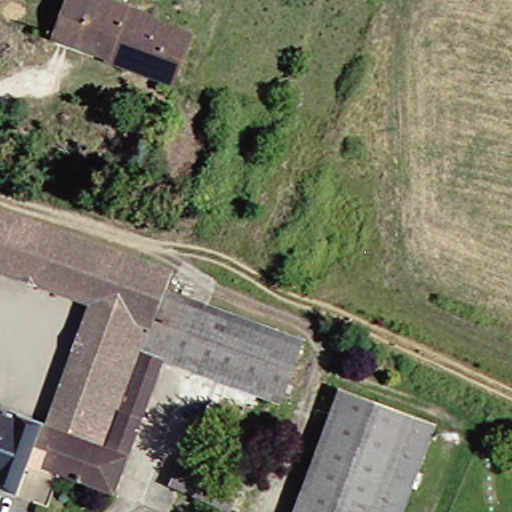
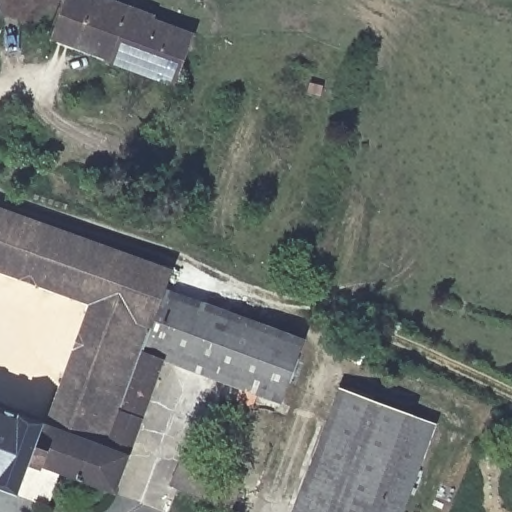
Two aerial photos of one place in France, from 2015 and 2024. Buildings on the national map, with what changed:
unchanged [(61,38),(77,0),(114,0),(163,19),(162,25),(201,40),(183,80),(180,91),(116,63),(61,38)]
unchanged [(180,290),(309,336),(286,400),(173,358),(122,495),(86,482),(38,464),(28,496),(0,486),(0,403),(56,425),(73,383),(100,311),(0,272),(0,205),(185,273),(180,290)]
unchanged [(351,386),(420,416),(445,427),(411,512),(301,512),(351,386)]
unchanged [(184,480),(196,455),(245,482),(233,506),(184,480)]

